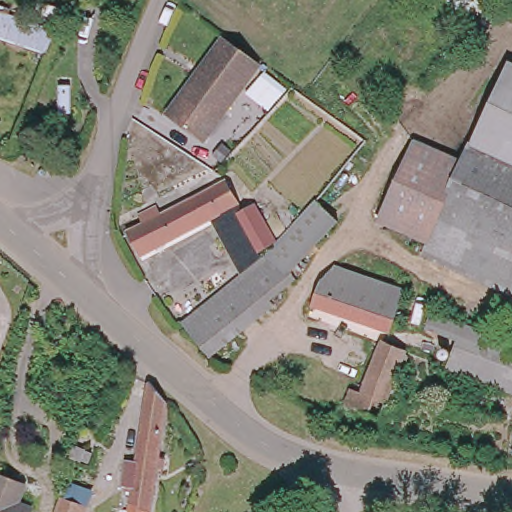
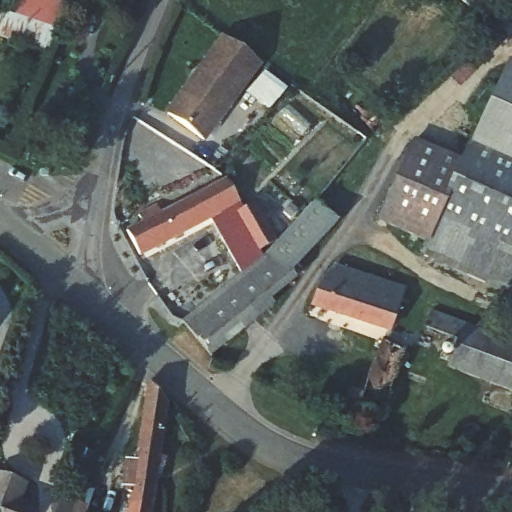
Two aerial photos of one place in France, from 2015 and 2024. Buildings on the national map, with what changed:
unchanged [(56,29),(46,53),(0,36),(0,10),(56,29)]
unchanged [(208,141),(169,117),(221,39),(223,37),(261,60),(258,65),(208,141)]
unchanged [(499,79),(512,84),(512,175),(464,158),(499,79)]
unchanged [(432,153),(390,227),(377,220),(416,144),(432,153)]
unchanged [(464,158),(512,175),(512,260),(437,223),(424,244),(390,227),(432,153),(460,167),(464,158)]
unchanged [(153,204),(158,212),(184,198),(225,177),(236,202),(230,205),(204,218),(136,254),(123,229),(140,221),(136,212),(153,204)]
unchanged [(251,199),(276,239),(267,250),(260,255),(233,210),(251,199)]
unchanged [(260,255),(267,250),(276,239),(313,199),(334,219),(289,271),(293,278),(268,302),(243,269),(260,255)]
unchanged [(230,205),(233,210),(260,255),(243,268),(236,273),(204,218),(230,205)]
unchanged [(426,244),(424,244),(437,223),(512,260),(512,300),(422,252),(426,244)]
unchanged [(387,330),(349,318),(311,302),(320,279),(322,279),(336,266),(389,284),(408,289),(404,299),(402,299),(389,331),(387,330)]
unchanged [(236,273),(243,269),(268,302),(199,357),(174,321),(236,273)]
unchanged [(464,322),(492,332),(512,339),(512,387),(449,366),(464,322)]
unchanged [(368,382),(387,330),(389,331),(409,339),(384,408),(371,403),(361,431),(360,434),(339,428),(325,423),(330,409),(341,413),(355,377),(368,382)]
unchanged [(133,465),(145,388),(146,384),(164,406),(148,512),(126,512),(128,496),(122,495),(123,489),(119,489),(123,464),(133,465)]
unchanged [(1,478),(21,485),(14,504),(29,510),(28,512),(0,512),(0,481),(1,478)]
unchanged [(59,493),(62,494),(68,478),(90,485),(84,502),(81,512),(52,512),(59,493)]

